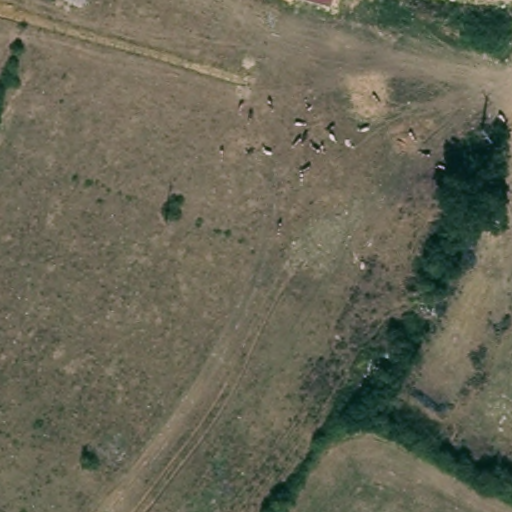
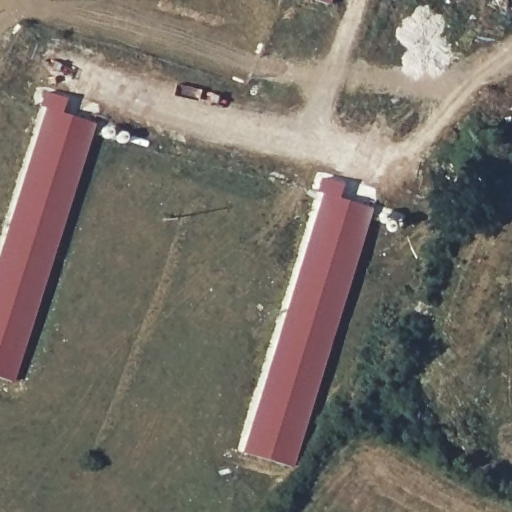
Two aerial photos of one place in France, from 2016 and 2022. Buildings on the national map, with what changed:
unchanged [(314,0),(332,0),(330,6),(314,0)]
new [(66,97),(61,112),(95,124),(15,382),(0,377),(0,250),(44,109),(39,107),(44,92),(66,97)]
new [(342,185),(338,197),(371,209),(294,468),(243,453),(321,195),(316,192),(320,178),(342,185)]

